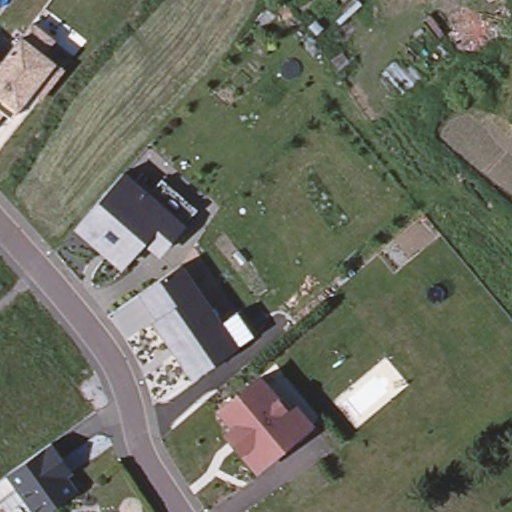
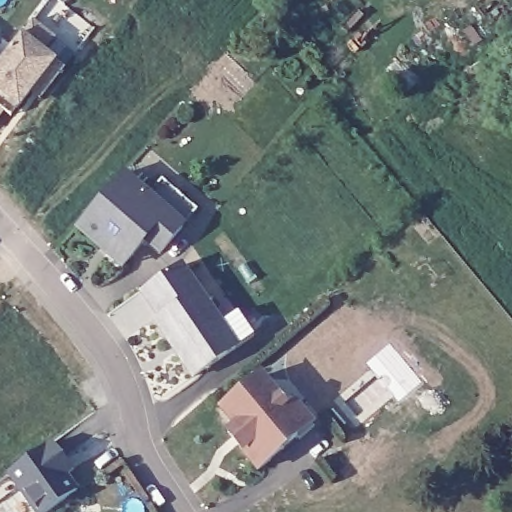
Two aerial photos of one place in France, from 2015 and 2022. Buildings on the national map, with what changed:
unchanged [(42,51),(62,67),(46,88),(33,78),(27,86),(31,88),(18,105),(10,99),(0,113),(0,60),(32,20),(52,37),(42,51)]
unchanged [(99,248),(87,239),(77,229),(122,175),(134,185),(148,197),(162,181),(195,211),(197,212),(183,228),(160,255),(157,253),(145,242),(127,263),(122,268),(99,248)]
unchanged [(237,349),(193,379),(180,359),(181,352),(175,345),(168,343),(155,323),(158,320),(140,294),(180,267),(207,306),(220,326),(237,314),(253,338),(237,349)]
unchanged [(229,435),(237,428),(229,419),(222,411),(260,377),(268,387),(287,409),(290,412),(296,406),(312,426),(298,437),(295,440),(259,471),(257,468),(242,450),(239,447),(229,435)]
unchanged [(34,512),(7,476),(50,445),(62,461),(70,473),(65,477),(76,493),(51,512),(34,512)]

